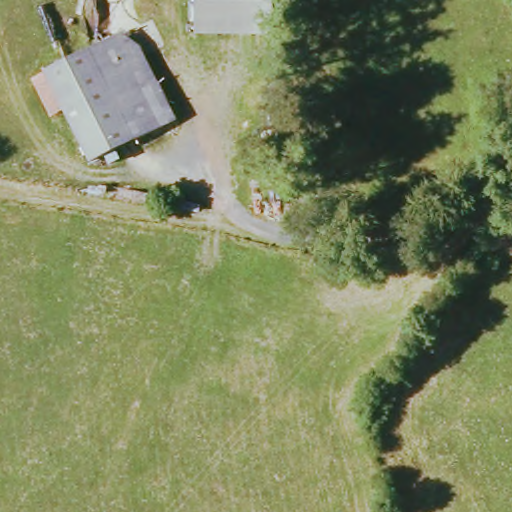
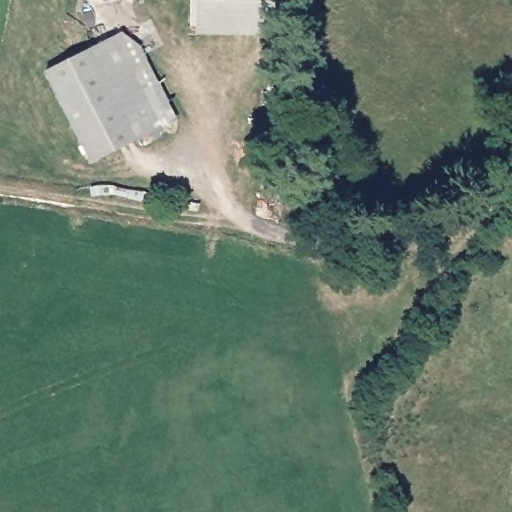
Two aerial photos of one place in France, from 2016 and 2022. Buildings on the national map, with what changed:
unchanged [(196,35),(195,0),(270,0),(270,34),(196,35)]
unchanged [(46,78),(128,29),(178,115),(98,164),(46,78)]

